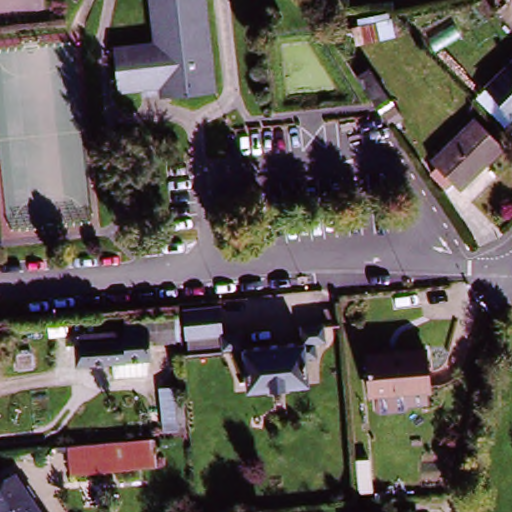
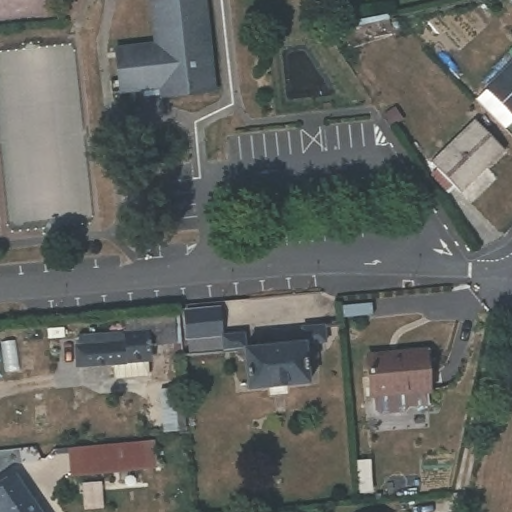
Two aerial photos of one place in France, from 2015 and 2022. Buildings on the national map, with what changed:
unchanged [(151,0),(203,0),(214,91),(162,98),(161,90),(121,94),(116,51),(156,47),(151,0)]
unchanged [(327,43),(391,14),(401,40),(356,53),(393,99),(376,116),(327,43)]
unchanged [(488,84),(512,61),(512,109),(488,84)]
unchanged [(433,179),(441,169),(435,161),(475,125),(501,154),(462,191),(455,184),(446,191),(433,179)]
unchanged [(294,330),(324,328),(325,344),(315,345),(317,363),(307,364),(309,386),(250,392),(245,354),(295,349),(294,330)]
unchanged [(72,349),(80,348),(79,342),(145,335),(170,333),(173,357),(146,360),(74,368),(72,349)]
unchanged [(216,340),(242,337),(245,354),(217,358),(182,362),(180,344),(216,340)]
unchanged [(364,350),(421,346),(423,393),(367,397),(364,350)]
unchanged [(161,388),(185,386),(188,427),(166,429),(161,388)]
unchanged [(158,445),(160,470),(73,478),(71,454),(158,445)]
unchanged [(0,485),(1,487),(12,479),(36,512),(0,512),(0,485)]

